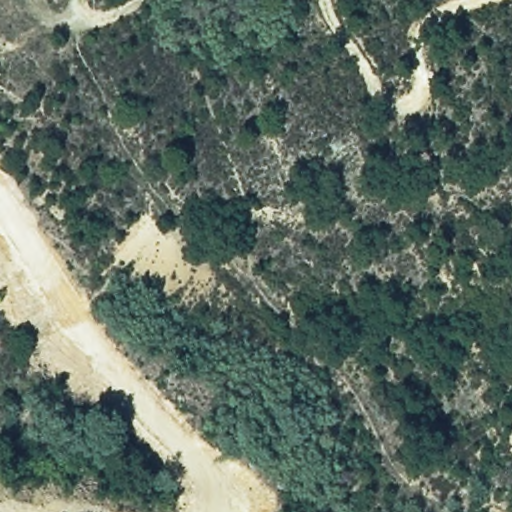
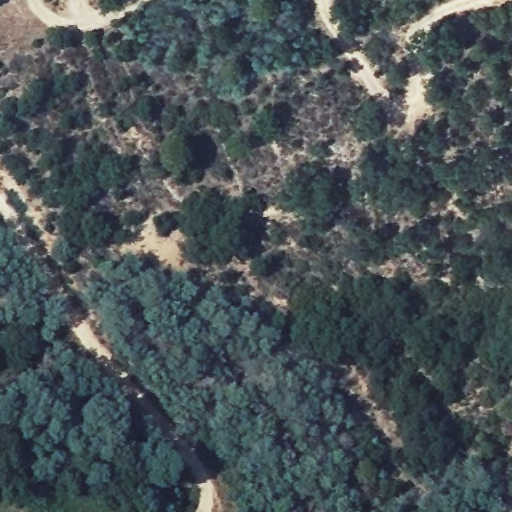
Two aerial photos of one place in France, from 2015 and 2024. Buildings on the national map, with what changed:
unchanged [(4,67),(0,75),(0,64),(4,67)]

